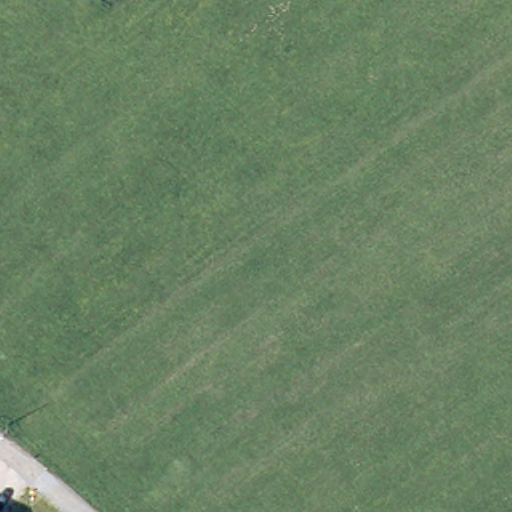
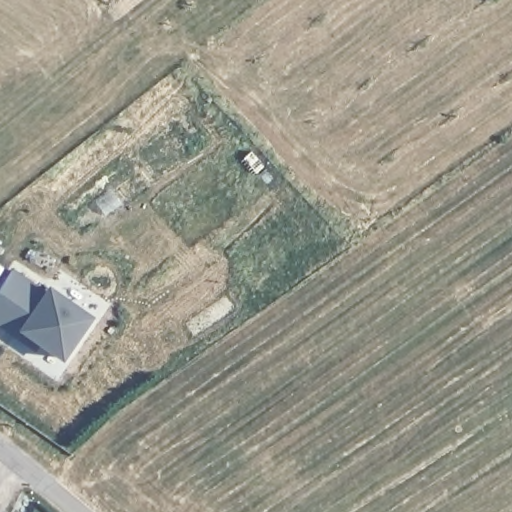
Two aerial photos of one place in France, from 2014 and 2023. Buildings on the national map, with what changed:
new [(41,288),(44,284),(90,315),(59,360),(37,344),(33,350),(0,328),(0,284),(11,266),(41,288)]

